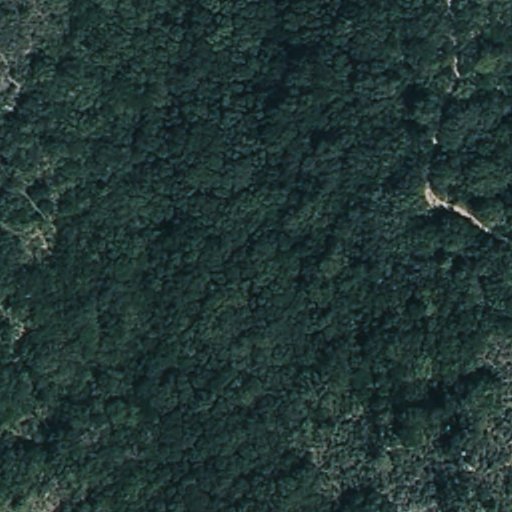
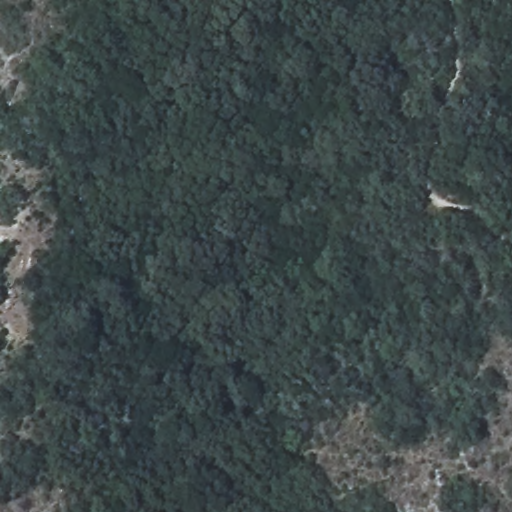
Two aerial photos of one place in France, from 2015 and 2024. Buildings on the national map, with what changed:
[]

